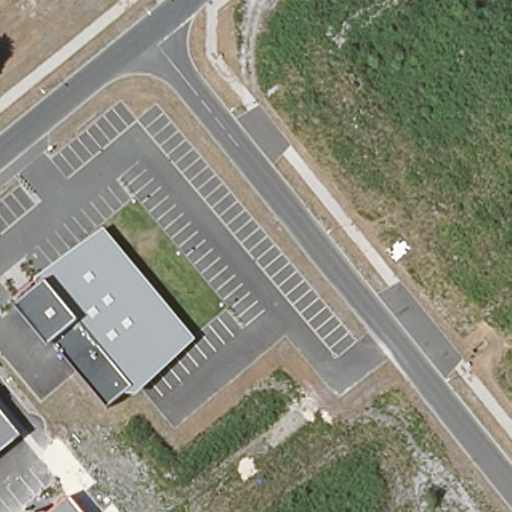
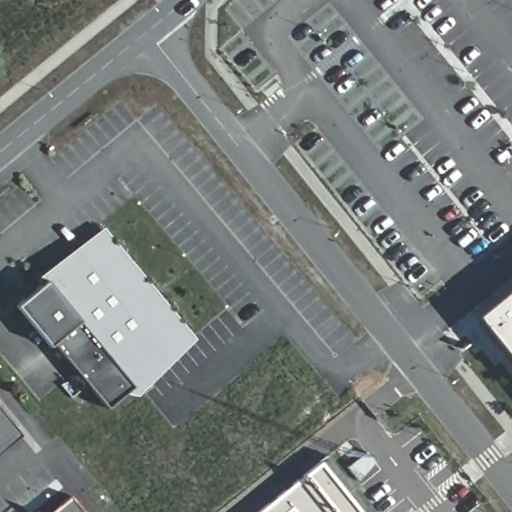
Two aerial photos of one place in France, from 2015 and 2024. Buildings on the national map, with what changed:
unchanged [(136,395),(123,393),(106,408),(48,343),(15,305),(43,283),(36,275),(104,227),(194,338),(136,395)]
new [(481,323),(512,299),(512,361),(481,323)]
unchanged [(0,408),(21,435),(0,453),(0,408)]
new [(321,460),(363,512),(303,512),(295,503),(285,512),(258,512),(321,460)]
unchanged [(69,494),(84,512),(49,512),(69,494)]

